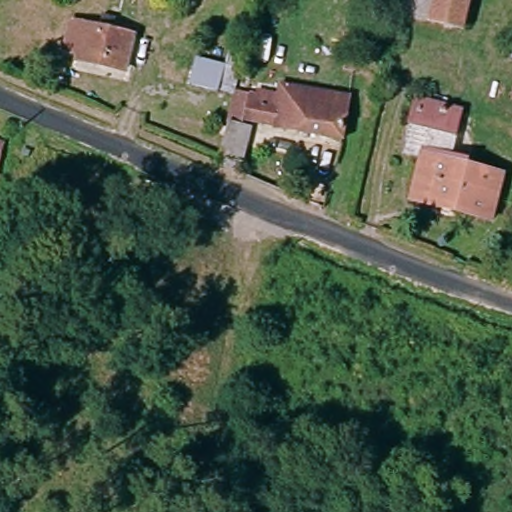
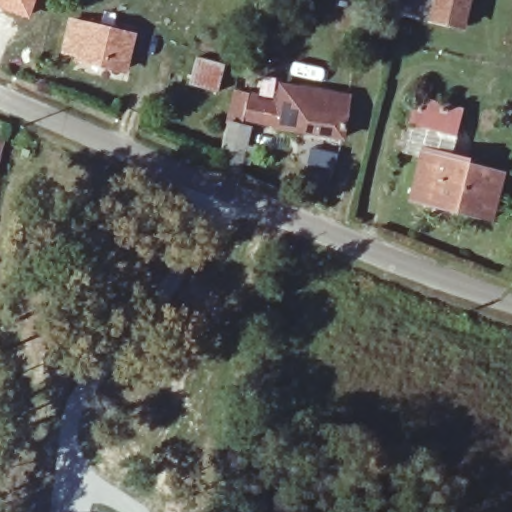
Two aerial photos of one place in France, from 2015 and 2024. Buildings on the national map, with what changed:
new [(0,9),(0,0),(35,0),(28,19),(0,9)]
unchanged [(276,0),(274,10),(259,6),(260,0),(276,0)]
unchanged [(398,12),(401,0),(470,0),(464,26),(398,12)]
unchanged [(127,69),(115,66),(79,58),(80,50),(65,47),(72,18),(123,30),(135,33),(127,69)]
unchanged [(510,56),(512,46),(512,56),(510,56)]
unchanged [(195,58),(224,64),(218,93),(189,86),(195,58)]
unchanged [(285,102),(290,83),(356,98),(346,141),(259,120),(261,114),(255,112),(249,136),(254,138),(245,184),(226,176),(242,93),(285,102)]
unchanged [(412,102),(464,114),(459,136),(406,124),(412,102)]
unchanged [(401,144),(406,124),(459,136),(464,138),(458,159),(435,153),(421,149),(401,144)]
unchanged [(0,148),(0,144),(1,144),(0,148)]
unchanged [(435,153),(458,159),(499,169),(488,210),(487,215),(409,195),(421,149),(435,153)]
unchanged [(202,357),(169,346),(184,308),(215,319),(202,357)]

